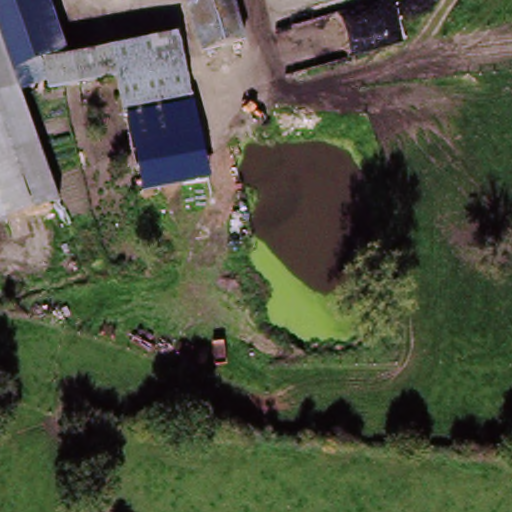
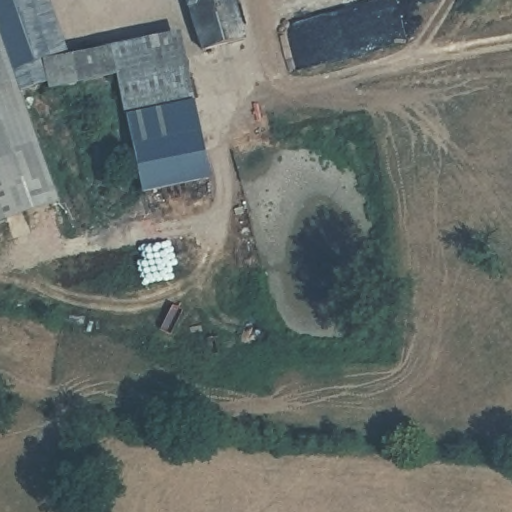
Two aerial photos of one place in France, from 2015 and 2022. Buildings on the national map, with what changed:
unchanged [(52,50),(19,66),(0,19),(0,0),(31,0),(52,50)]
unchanged [(19,66),(52,50),(31,0),(50,0),(68,54),(71,65),(46,70),(50,87),(27,85),(19,66)]
unchanged [(242,42),(202,54),(187,0),(230,0),(242,42)]
unchanged [(0,95),(0,19),(19,66),(27,85),(0,95)]
unchanged [(114,74),(50,87),(46,70),(178,40),(182,59),(114,74)]
unchanged [(122,112),(114,74),(182,59),(190,96),(122,112)]
unchanged [(0,222),(0,95),(9,92),(17,89),(57,204),(0,222)]
unchanged [(190,96),(194,96),(210,182),(143,194),(122,112),(190,96)]

